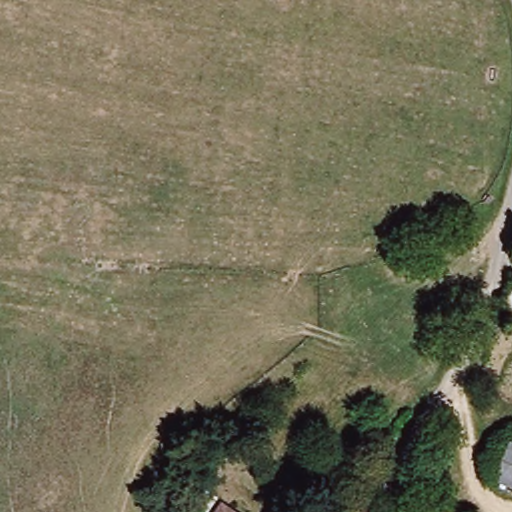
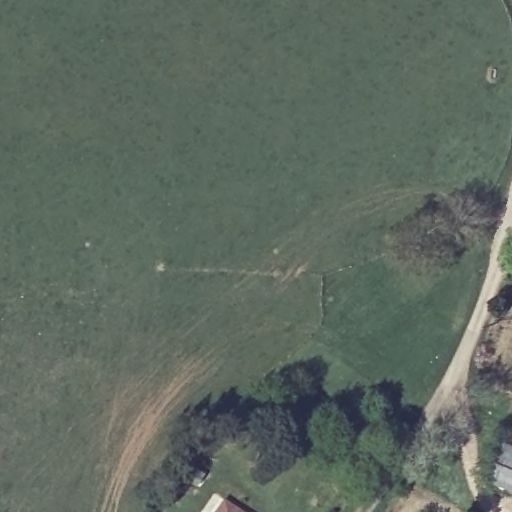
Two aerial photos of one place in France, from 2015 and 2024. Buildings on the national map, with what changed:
unchanged [(508,443),(512,444),(512,489),(492,481),(508,443)]
unchanged [(224,512),(219,512),(220,510),(224,512)]

